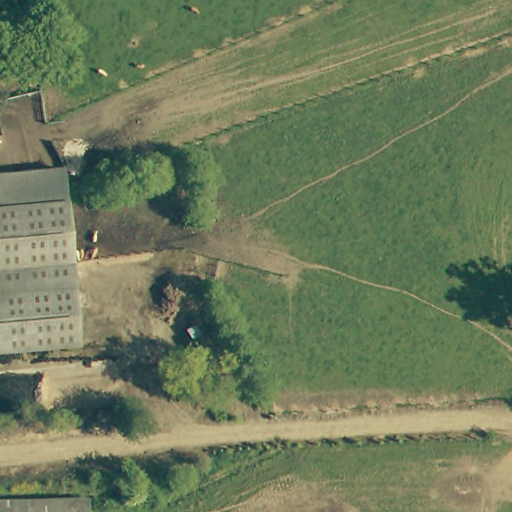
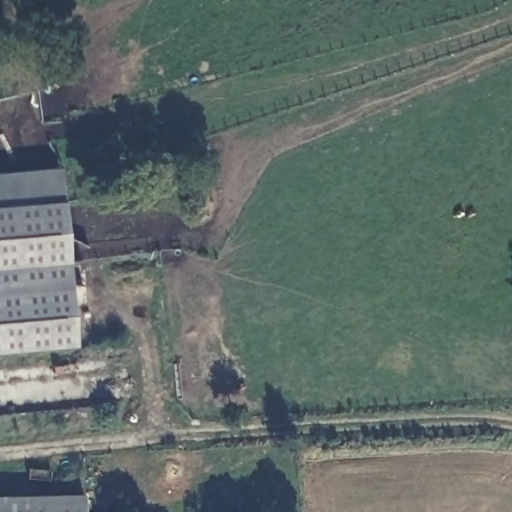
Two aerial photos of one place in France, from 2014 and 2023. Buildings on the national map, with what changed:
unchanged [(0,205),(0,170),(64,166),(66,200),(0,205)]
unchanged [(66,200),(69,230),(71,262),(77,345),(60,347),(0,352),(0,205),(66,200)]
unchanged [(89,501),(89,512),(0,512),(0,501),(89,501)]

